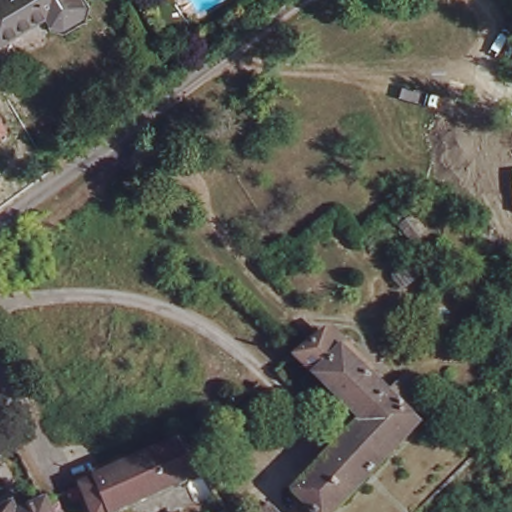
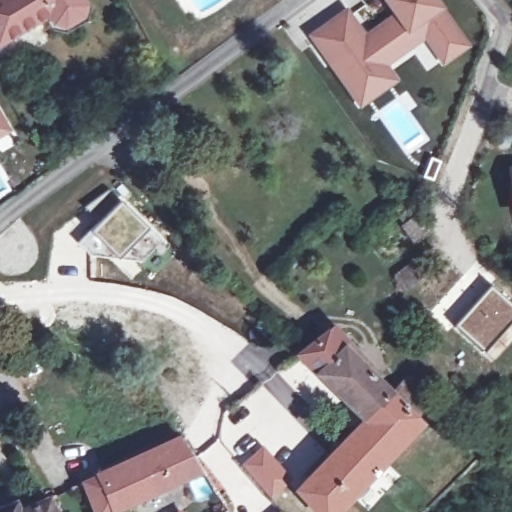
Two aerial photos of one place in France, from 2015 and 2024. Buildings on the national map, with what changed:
unchanged [(0,44),(0,0),(92,0),(95,7),(93,20),(70,35),(55,30),(48,17),(14,38),(1,46),(0,44)]
new [(392,16),(381,0),(436,0),(442,9),(469,47),(441,67),(424,41),(388,65),(398,81),(359,109),(306,35),(346,8),(365,33),(392,16)]
unchanged [(6,131),(0,136),(0,120),(6,131)]
new [(138,264),(136,262),(118,261),(111,259),(91,254),(77,241),(120,198),(148,225),(162,240),(138,264)]
unchanged [(415,215),(428,230),(412,243),(399,227),(415,215)]
new [(3,244),(31,231),(37,242),(38,255),(34,265),(24,273),(10,276),(3,275),(0,271),(0,246),(3,244)]
unchanged [(402,289),(393,278),(407,267),(411,271),(423,262),(428,267),(402,289)]
unchanged [(388,396),(403,383),(426,407),(413,421),(417,425),(333,512),(312,512),(294,492),(361,422),(296,354),(326,331),(388,396)]
unchanged [(110,512),(92,512),(81,483),(104,473),(179,439),(200,470),(110,512)]
unchanged [(264,498),(276,512),(249,512),(261,501),(264,498)]
unchanged [(55,512),(31,512),(51,503),(55,512)]
unchanged [(24,512),(8,512),(21,506),(24,512)]

